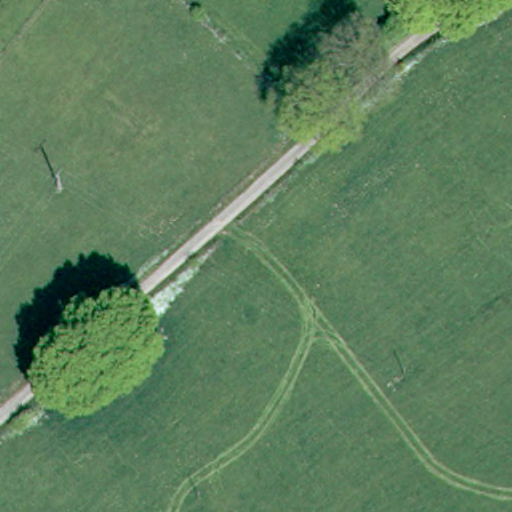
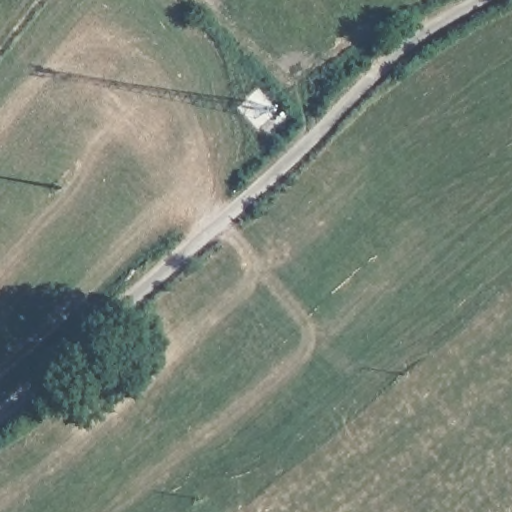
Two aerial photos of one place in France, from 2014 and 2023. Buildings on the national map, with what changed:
[]

